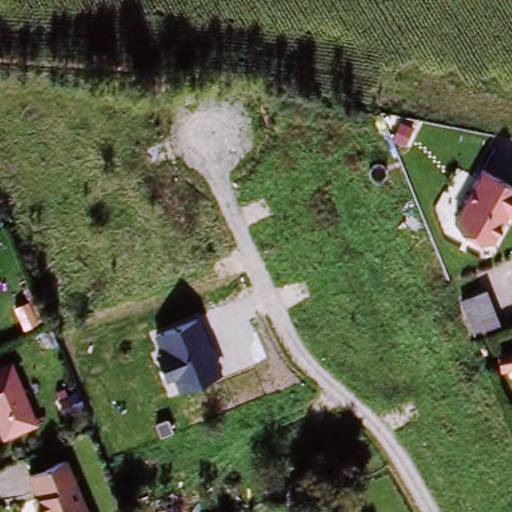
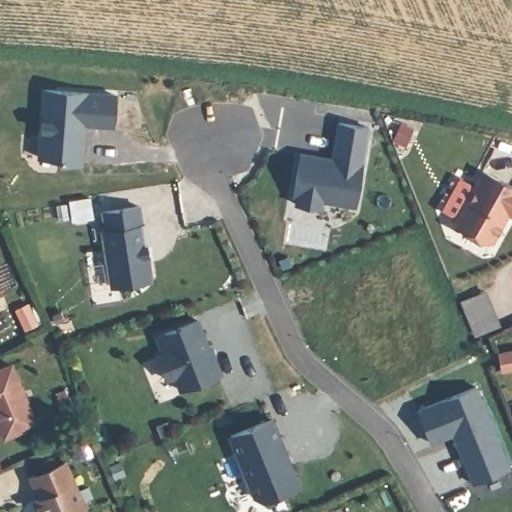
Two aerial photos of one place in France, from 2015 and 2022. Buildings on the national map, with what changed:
new [(44,90),(115,95),(112,126),(85,124),(82,164),(60,162),(60,159),(39,157),(44,90)]
new [(300,154),(332,160),(339,124),(369,128),(355,207),(322,201),(321,209),(296,205),(297,197),(293,196),(300,154)]
unchanged [(498,170),(496,174),(512,184),(512,221),(507,230),(457,200),(482,160),(498,170)]
new [(106,230),(102,211),(139,205),(142,225),(146,224),(149,244),(147,244),(152,276),(148,281),(111,287),(102,231),(106,230)]
unchanged [(479,290),(497,330),(475,341),(456,301),(479,290)]
new [(182,392),(175,378),(167,381),(156,355),(163,352),(156,337),(200,319),(223,377),(182,392)]
new [(500,372),(494,357),(512,349),(512,367),(500,372)]
demolished [(509,360),(512,359),(512,369),(509,360)]
unchanged [(31,428),(0,441),(0,370),(6,367),(31,428)]
new [(454,435),(432,445),(419,411),(476,386),(510,469),(473,483),(454,435)]
new [(272,420),(299,487),(264,501),(255,497),(230,436),(272,420)]
unchanged [(39,496),(29,475),(64,460),(86,512),(40,512),(34,498),(39,496)]
unchanged [(287,512),(340,500),(343,512),(287,512)]

